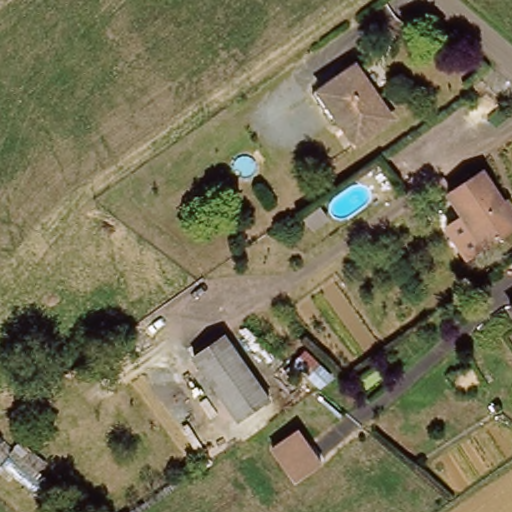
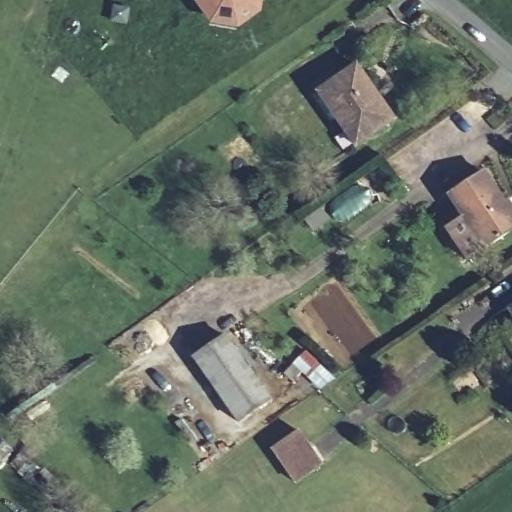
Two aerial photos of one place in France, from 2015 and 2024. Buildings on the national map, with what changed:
new [(237,29),(212,25),(195,0),(264,0),(261,15),(237,29)]
unchanged [(319,96),(330,88),(359,65),(376,86),(371,90),(392,119),(359,143),(341,118),(336,121),(319,96)]
unchanged [(481,248),(458,260),(439,239),(455,219),(447,196),(481,174),(512,221),(512,227),(481,248)]
unchanged [(370,208),(379,220),(361,230),(354,219),(370,208)]
unchanged [(512,312),(512,316),(510,314),(512,312)]
unchanged [(233,421),(191,361),(222,339),(264,400),(233,421)]
unchanged [(297,431),(319,463),(291,482),(269,449),(297,431)]
unchanged [(28,451),(43,464),(36,473),(55,490),(44,505),(10,473),(13,468),(0,456),(0,439),(3,437),(23,454),(28,451)]

